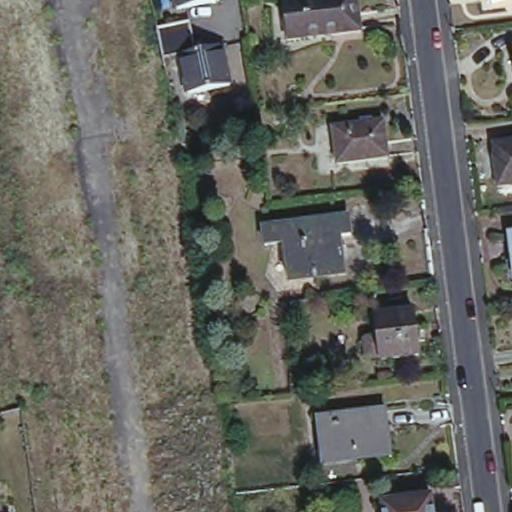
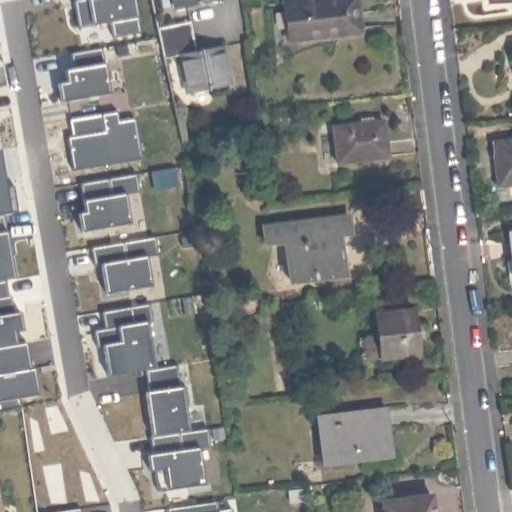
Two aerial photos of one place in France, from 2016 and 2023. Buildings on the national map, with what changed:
new [(142,37),(112,41),(110,25),(78,29),(75,2),(87,0),(135,0),(142,37)]
unchanged [(178,9),(176,0),(219,0),(219,1),(178,9)]
unchanged [(283,1),(291,0),(357,0),(361,30),(287,39),(283,1)]
unchanged [(222,46),(230,85),(190,94),(182,55),(165,58),(162,43),(158,29),(190,21),(193,36),(197,51),(222,46)]
new [(59,102),(56,78),(69,75),(67,66),(75,65),(72,52),(103,47),(105,61),(112,60),(116,94),(64,103),(59,102)]
new [(116,111),(117,120),(134,118),(140,159),(72,171),(67,137),(72,136),(69,120),(116,111)]
unchanged [(333,127),(384,120),(389,157),(338,163),(333,127)]
unchanged [(512,141),(512,185),(498,186),(495,156),(496,156),(493,143),(512,141)]
new [(79,215),(84,214),(82,202),(112,197),(109,182),(137,176),(140,194),(126,196),(131,227),(82,236),(79,215)]
unchanged [(352,229),(340,230),(345,267),(313,271),(313,265),(289,268),(285,237),(276,238),(266,240),(263,222),(274,221),(348,212),(352,229)]
new [(4,281),(0,282),(0,215),(3,215),(6,230),(10,229),(17,277),(6,280),(9,296),(11,296),(14,313),(21,312),(24,331),(15,333),(17,344),(27,342),(32,368),(35,367),(39,394),(0,400),(0,347),(12,345),(12,341),(4,281)]
unchanged [(510,229),(512,229),(512,249),(510,229)]
new [(155,239),(157,257),(147,258),(151,289),(106,296),(102,267),(95,269),(91,250),(155,239)]
new [(0,347),(0,282),(4,281),(8,313),(12,345),(0,347)]
new [(156,369),(108,377),(102,347),(97,348),(94,331),(105,329),(102,312),(150,304),(153,322),(148,322),(156,369)]
unchanged [(418,304),(426,350),(386,354),(385,352),(375,354),(372,352),(370,335),(372,332),(382,331),(379,309),(418,304)]
new [(189,405),(186,406),(190,431),(152,437),(146,392),(149,392),(146,370),(177,365),(181,388),(186,387),(189,405)]
unchanged [(317,416),(386,408),(391,449),(322,458),(317,416)]
new [(182,449),(179,433),(190,431),(207,429),(211,445),(202,446),(207,486),(160,493),(157,470),(150,471),(149,453),(182,449)]
unchanged [(432,495),(434,512),(383,512),(382,501),(432,495)]
new [(219,510),(232,508),(233,512),(167,512),(166,507),(217,498),(219,510)]
new [(81,512),(54,512),(80,508),(81,512)]

